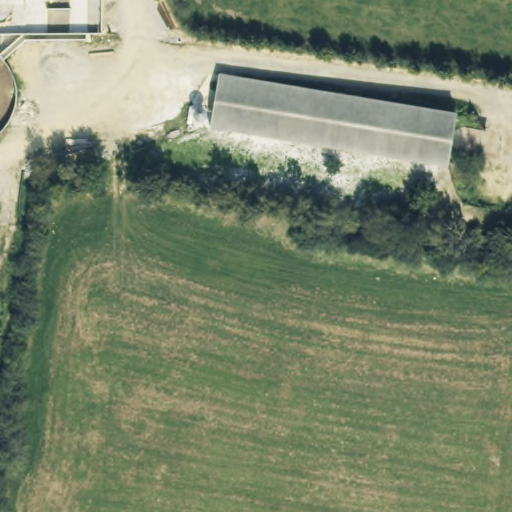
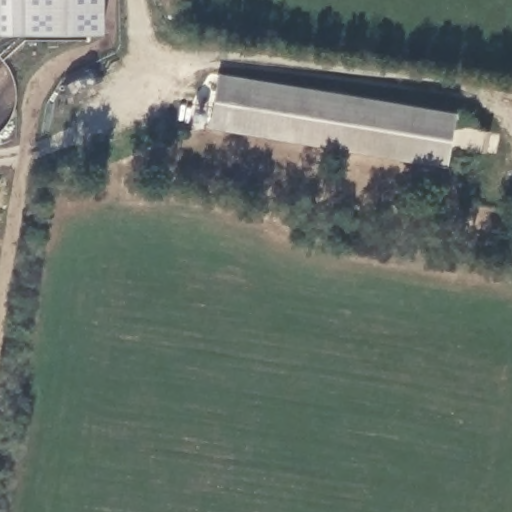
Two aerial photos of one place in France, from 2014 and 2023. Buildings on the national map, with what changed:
new [(103,32),(0,33),(0,0),(103,0),(103,32)]
unchanged [(235,79),(235,82),(457,121),(450,166),(227,129),(226,132),(211,130),(215,111),(217,94),(220,76),(235,79)]

